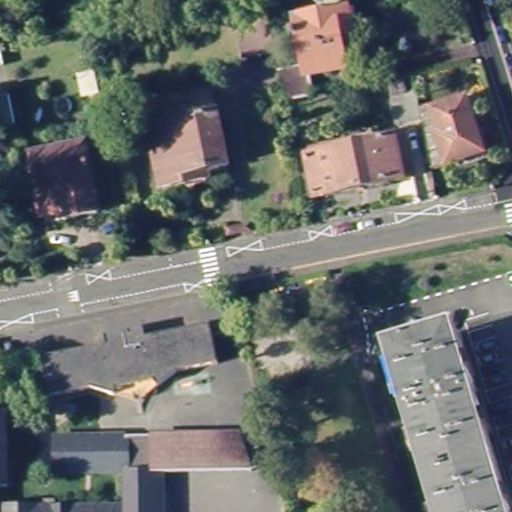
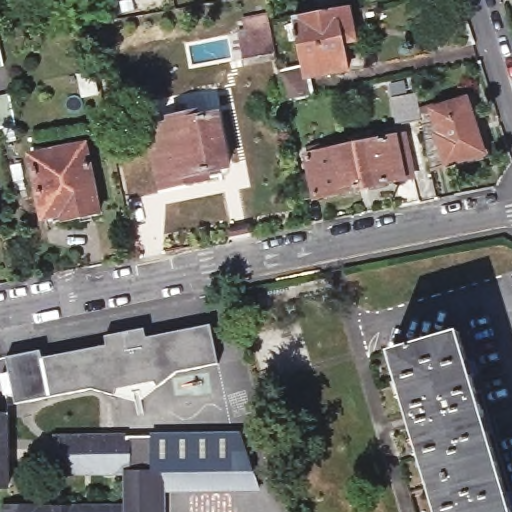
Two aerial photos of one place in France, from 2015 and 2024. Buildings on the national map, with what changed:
unchanged [(329,4),(329,0),(350,0),(329,4)]
unchanged [(358,6),(363,35),(354,37),(359,63),(317,73),(322,96),(295,102),(289,70),(310,66),(302,17),(358,6)]
unchanged [(247,28),(244,17),(267,12),(269,21),(275,51),(244,58),(239,29),(247,28)]
unchanged [(0,67),(0,44),(4,66),(0,67)]
unchanged [(402,124),(397,97),(421,91),(425,112),(470,96),(488,152),(436,169),(427,120),(402,124)]
unchanged [(15,126),(3,128),(3,129),(0,130),(0,97),(9,95),(15,126)]
unchanged [(225,166),(184,175),(185,182),(163,187),(150,127),(170,123),(169,117),(194,113),(196,118),(215,113),(225,166)]
unchanged [(304,175),(315,173),(311,154),(409,132),(419,177),(309,200),(304,175)]
unchanged [(101,214),(71,221),(68,211),(48,215),(36,158),(89,146),(101,214)]
unchanged [(228,228),(247,223),(249,233),(230,238),(228,228)]
unchanged [(258,320),(239,323),(238,312),(255,308),(258,320)]
unchanged [(134,401),(112,395),(86,389),(58,394),(50,356),(99,346),(98,336),(146,327),(149,337),(214,324),(222,364),(179,372),(156,387),(139,400),(134,401)]
unchanged [(438,512),(391,353),(460,333),(512,512),(438,512)]
new [(41,351),(42,357),(50,356),(58,394),(15,404),(7,358),(41,351)]
unchanged [(0,487),(0,414),(6,414),(6,486),(0,487)]
unchanged [(154,435),(154,434),(241,433),(252,472),(169,472),(154,472),(154,435)]
unchanged [(66,472),(66,436),(143,435),(143,441),(126,441),(126,472),(66,472)]
unchanged [(126,472),(143,472),(143,441),(143,435),(154,435),(154,472),(154,512),(126,512),(126,506),(126,472)]
unchanged [(169,512),(154,512),(154,472),(169,472),(169,512)]
unchanged [(34,506),(35,508),(126,506),(126,512),(3,512),(3,506),(34,506)]

